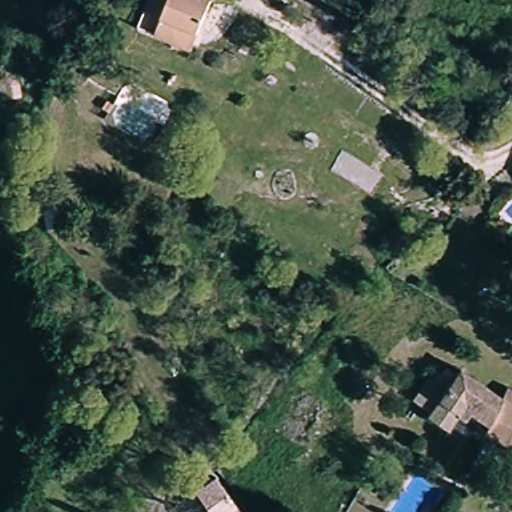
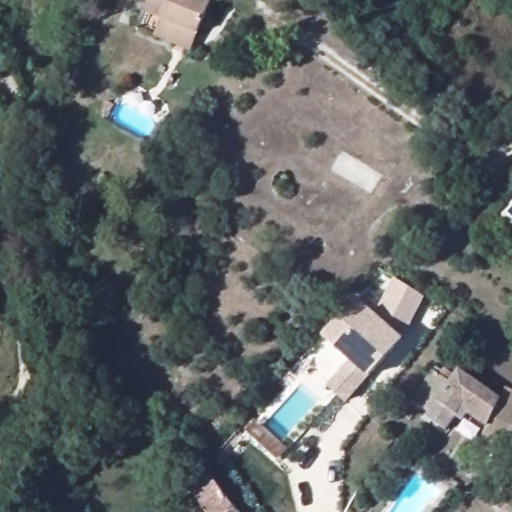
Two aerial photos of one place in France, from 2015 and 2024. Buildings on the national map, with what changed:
unchanged [(134,7),(137,0),(201,0),(187,30),(134,7)]
new [(425,295),(403,340),(369,376),(337,347),(321,334),(355,297),(370,310),(378,317),(395,277),(425,295)]
unchanged [(512,429),(503,446),(482,434),(486,425),(481,421),(458,403),(440,425),(422,412),(426,408),(410,396),(432,366),(448,379),(450,376),(456,367),(497,400),(504,391),(512,395),(512,429)]
unchanged [(200,469),(238,512),(192,512),(184,501),(177,506),(169,495),(185,480),(177,470),(190,457),(200,469)]

